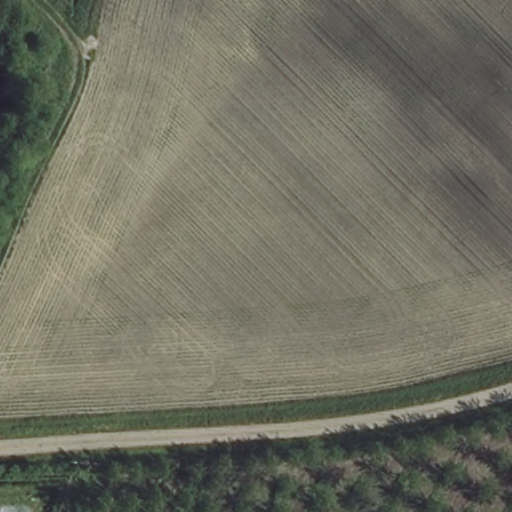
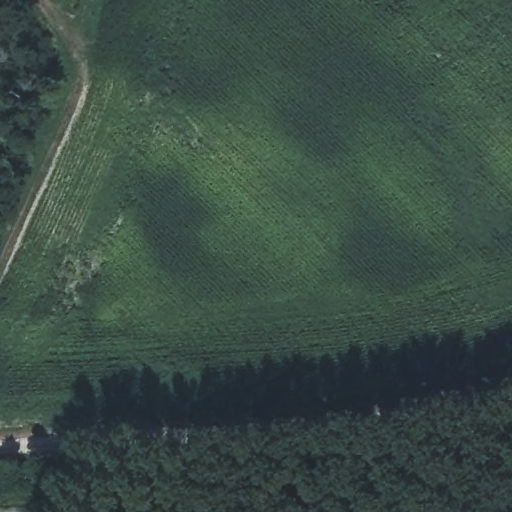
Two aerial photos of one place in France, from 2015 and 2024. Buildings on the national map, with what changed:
[]

